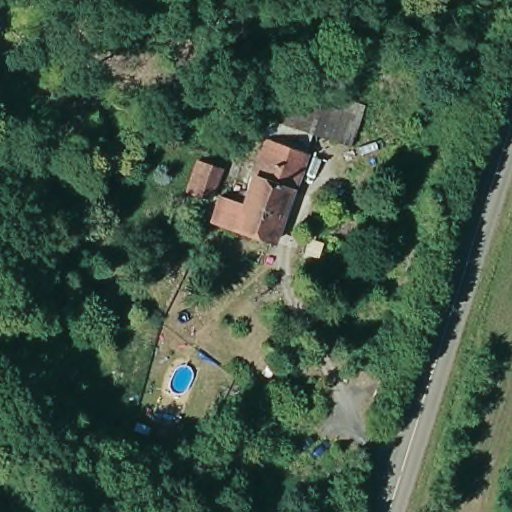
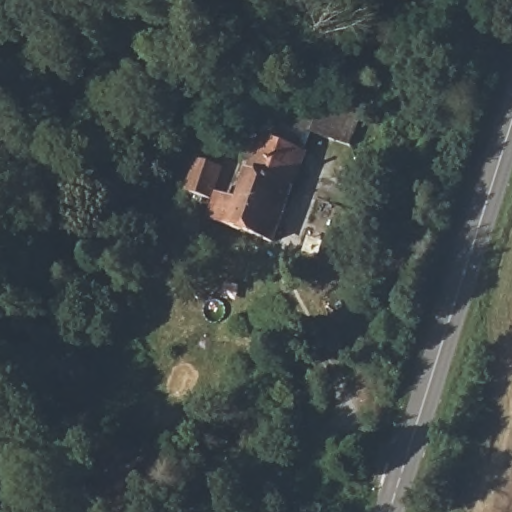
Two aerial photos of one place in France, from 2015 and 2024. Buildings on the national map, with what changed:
unchanged [(280,90),(389,130),(380,157),(268,120),(280,90)]
unchanged [(218,193),(232,199),(245,171),(256,141),(302,151),(289,187),(270,247),(209,223),(218,193)]
unchanged [(225,170),(214,198),(187,191),(197,163),(225,170)]

